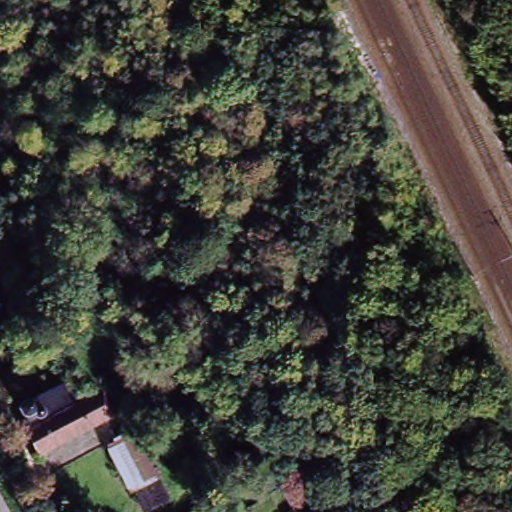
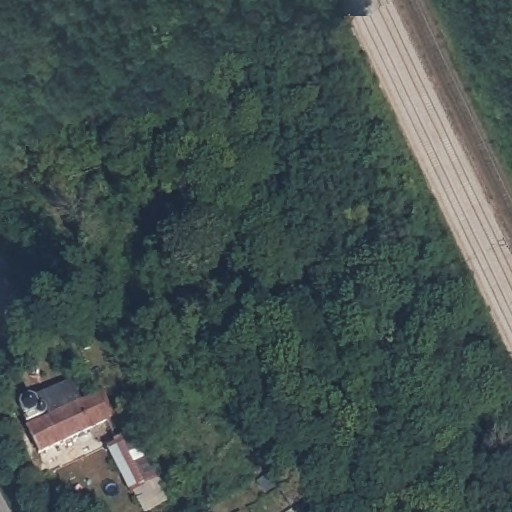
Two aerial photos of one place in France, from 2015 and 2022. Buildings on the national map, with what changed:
unchanged [(39,437),(37,431),(34,432),(29,423),(25,421),(22,414),(25,408),(71,387),(84,417),(39,437)]
unchanged [(111,426),(42,456),(35,438),(39,437),(84,417),(103,408),(111,426)]
unchanged [(109,452),(138,437),(160,481),(131,495),(109,452)]

